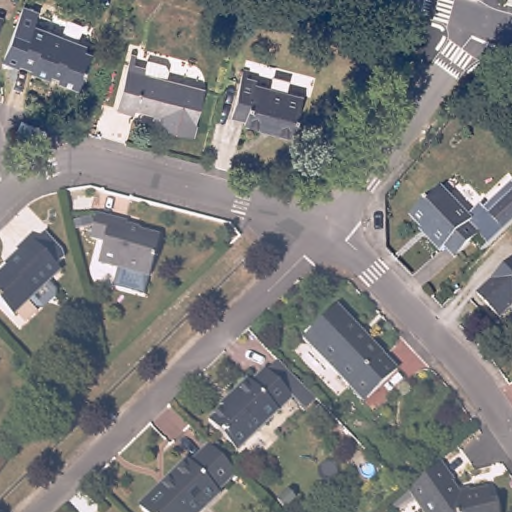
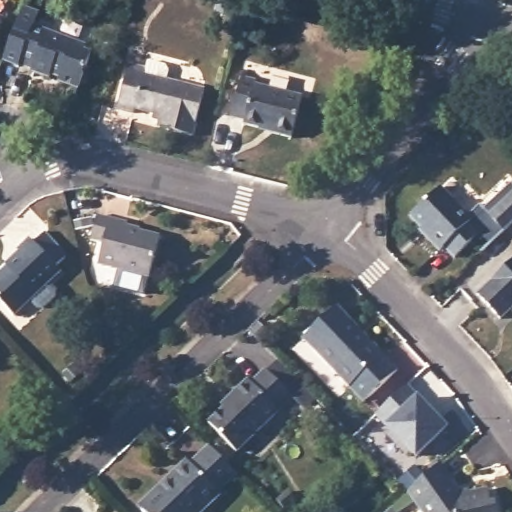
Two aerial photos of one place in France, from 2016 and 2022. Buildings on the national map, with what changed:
unchanged [(34,17),(40,20),(38,27),(86,45),(84,50),(91,52),(77,89),(57,82),(59,79),(50,75),(49,78),(30,71),(32,66),(18,60),(32,24),(34,17)]
unchanged [(0,21),(0,19),(1,19),(0,21)]
unchanged [(192,136),(158,127),(160,116),(133,109),(132,114),(115,110),(127,63),(130,53),(136,54),(134,65),(145,68),(147,60),(165,64),(168,69),(165,81),(203,91),(192,136)]
unchanged [(232,117),(242,75),(255,77),(254,84),(301,97),(290,137),(272,132),(272,130),(245,124),(245,121),(232,117)]
unchanged [(453,257),(443,247),(438,251),(427,239),(429,236),(410,216),(440,188),(466,216),(507,177),(512,183),(512,222),(489,244),(478,233),(453,257)]
unchanged [(94,245),(101,219),(132,227),(130,232),(164,241),(154,282),(104,269),(109,248),(94,245)]
unchanged [(4,269),(17,256),(12,251),(25,240),(29,244),(40,234),(57,252),(58,258),(50,267),(54,271),(42,282),(49,291),(49,297),(37,308),(31,307),(24,300),(7,315),(0,306),(0,269),(2,267),(4,269)]
unchanged [(476,296),(512,261),(512,309),(499,320),(476,296)]
unchanged [(301,340),(333,308),(395,372),(363,403),(301,340)]
unchanged [(229,402),(227,399),(242,385),(246,388),(260,375),(261,377),(272,366),(304,398),(311,406),(300,416),(286,403),(231,457),(203,427),(229,402)]
unchanged [(64,375),(72,367),(79,374),(70,382),(64,375)]
new [(417,457),(386,425),(376,415),(407,386),(417,396),(448,427),(417,457)]
unchanged [(137,506),(168,476),(185,459),(190,465),(209,446),(236,474),(217,492),(220,495),(202,512),(144,512),(142,510),(137,506)]
unchanged [(408,491),(438,465),(458,494),(486,492),(490,509),(496,509),(497,512),(423,512),(408,491)]

